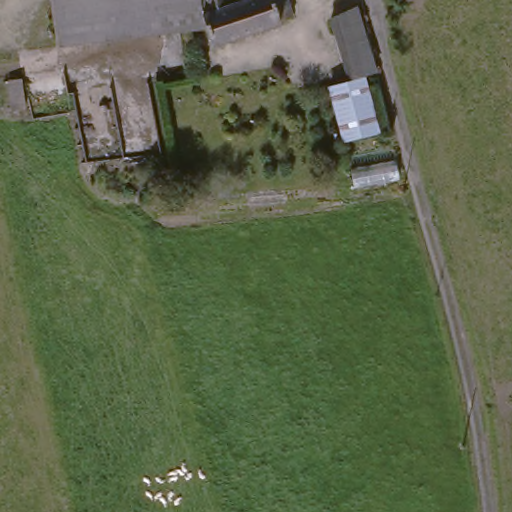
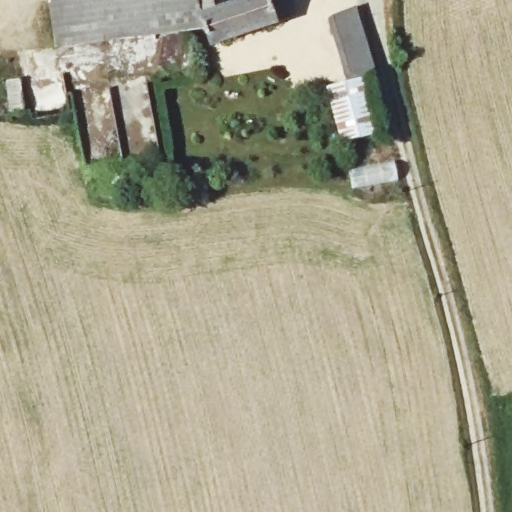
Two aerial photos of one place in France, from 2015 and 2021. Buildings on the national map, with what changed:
unchanged [(62,48),(56,0),(185,0),(189,30),(62,48)]
unchanged [(236,4),(247,0),(290,0),(297,17),(217,47),(211,27),(189,30),(185,0),(236,0),(236,4)]
unchanged [(368,77),(353,82),(334,19),(361,8),(379,72),(368,77)]
unchanged [(382,134),(348,142),(334,88),(353,82),(368,77),(382,134)]
unchanged [(7,82),(21,80),(24,110),(13,112),(13,111),(11,112),(7,82)]

